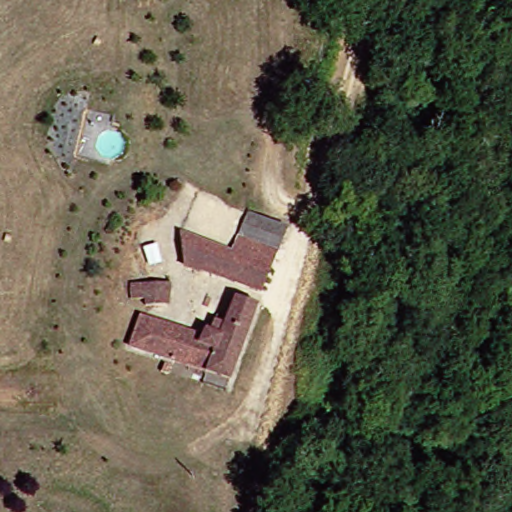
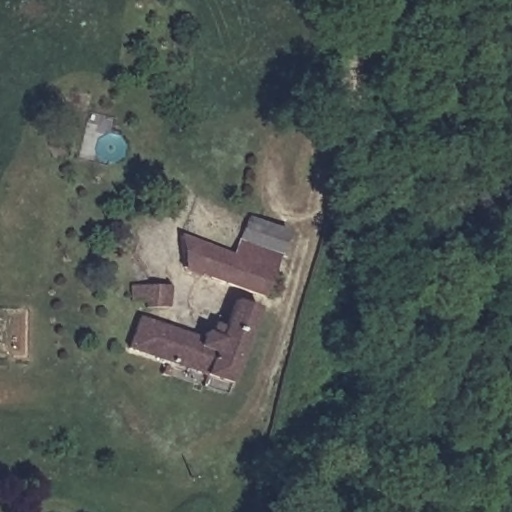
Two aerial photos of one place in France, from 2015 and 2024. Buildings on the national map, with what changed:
unchanged [(245,240),(253,221),(288,236),(282,255),(277,273),(289,279),(280,305),(189,271),(185,240),(238,258),(245,240)]
unchanged [(176,290),(176,315),(154,315),(154,308),(139,307),(139,290),(176,290)]
unchanged [(264,307),(236,382),(137,345),(149,314),(210,337),(213,330),(227,336),(242,300),(264,307)]
unchanged [(174,380),(177,371),(184,374),(179,382),(174,380)]

